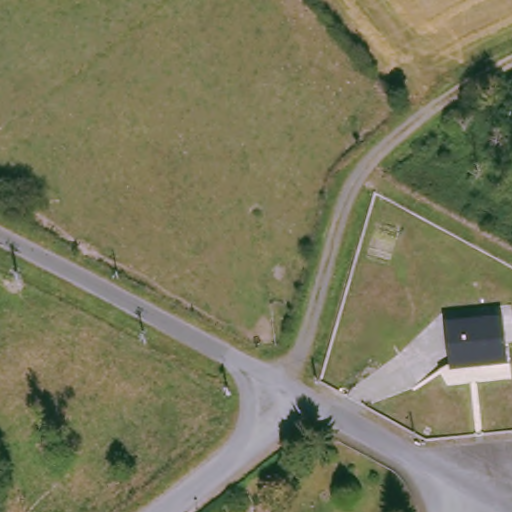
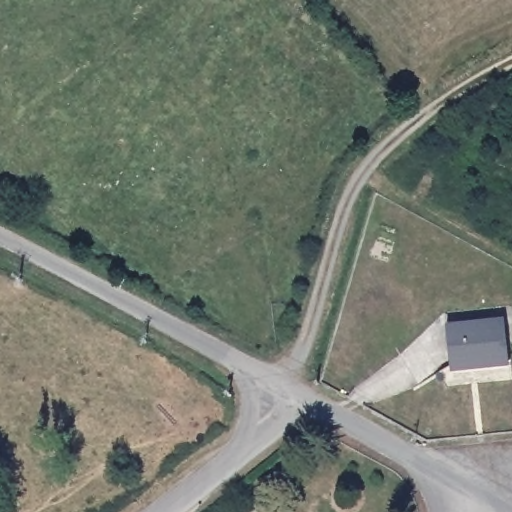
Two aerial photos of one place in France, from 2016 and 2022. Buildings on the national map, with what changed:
unchanged [(507,325),(512,374),(478,377),(477,371),(450,372),(446,329),(507,325)]

